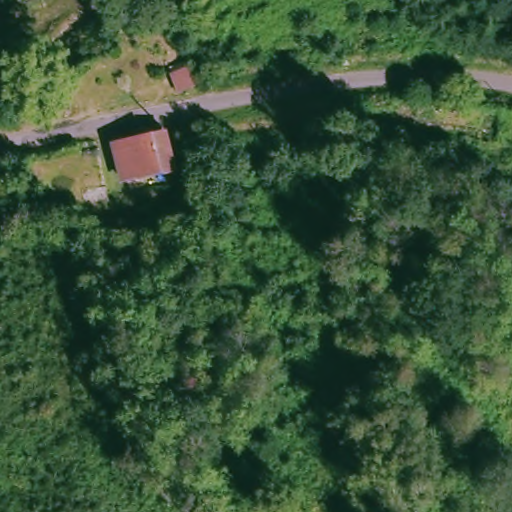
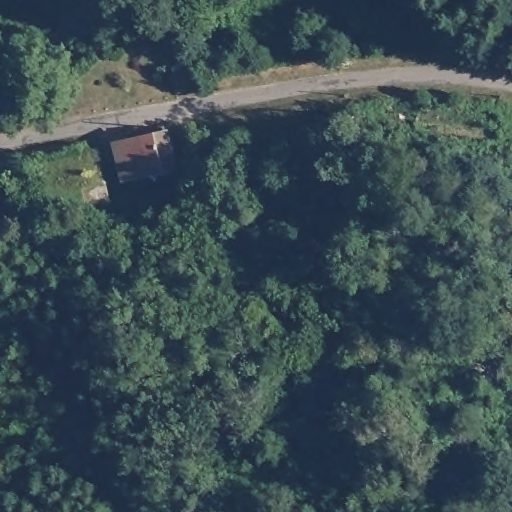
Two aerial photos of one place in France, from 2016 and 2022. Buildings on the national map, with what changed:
unchanged [(130,184),(123,143),(174,134),(182,173),(130,184)]
unchanged [(88,194),(112,188),(114,205),(90,208),(88,194)]

